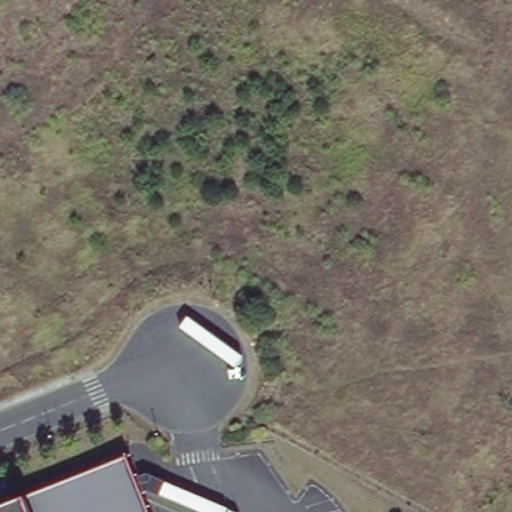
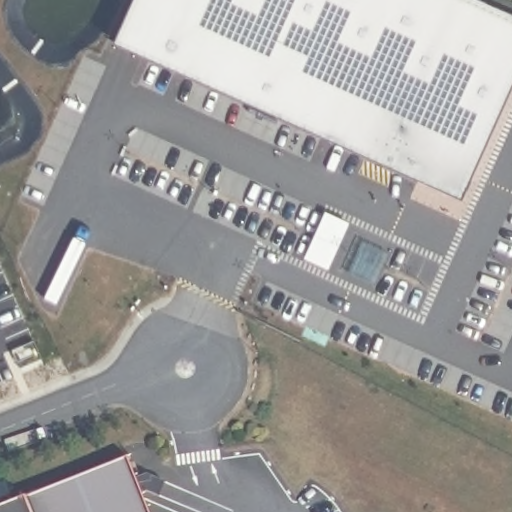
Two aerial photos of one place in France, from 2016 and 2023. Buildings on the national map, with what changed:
new [(465,199),(113,38),(130,0),(483,0),(512,13),(512,93),(465,199)]
new [(328,212),(349,221),(329,264),(308,255),(328,212)]
new [(367,241),(388,251),(374,282),(352,272),(367,241)]
unchanged [(161,512),(41,512),(34,494),(139,453),(161,512)]
unchanged [(0,512),(0,505),(22,496),(28,512),(0,512)]

